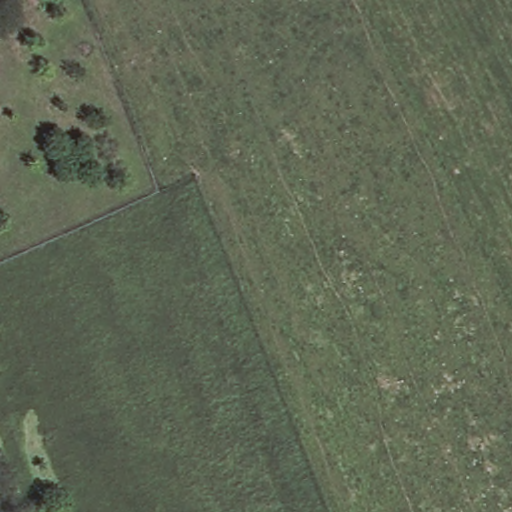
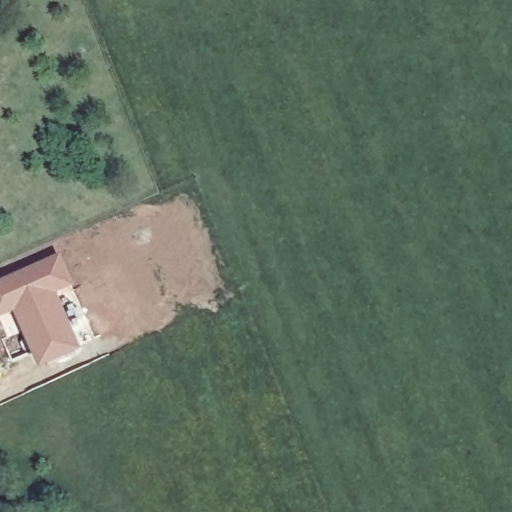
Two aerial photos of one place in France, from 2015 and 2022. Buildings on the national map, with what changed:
new [(74,285),(55,293),(80,348),(38,368),(13,311),(0,317),(0,278),(61,253),(74,285)]

